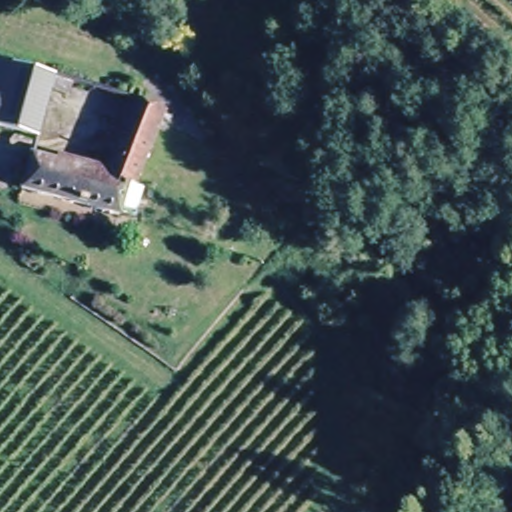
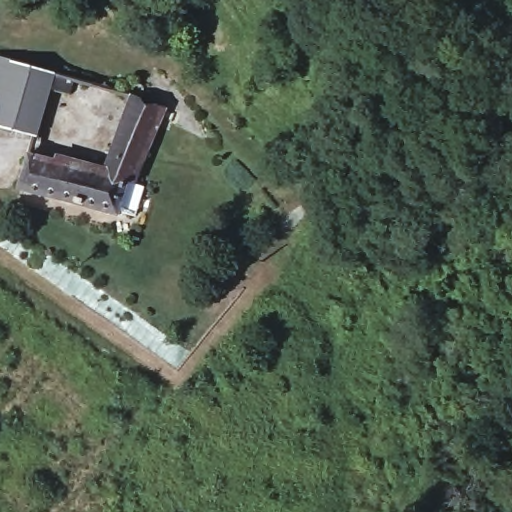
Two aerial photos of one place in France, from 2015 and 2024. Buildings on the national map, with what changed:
unchanged [(76,78),(71,93),(52,89),(38,135),(0,123),(0,53),(76,78)]
unchanged [(119,203),(118,207),(98,202),(19,177),(28,144),(99,164),(129,88),(162,100),(134,174),(145,178),(140,191),(134,207),(119,203)]

